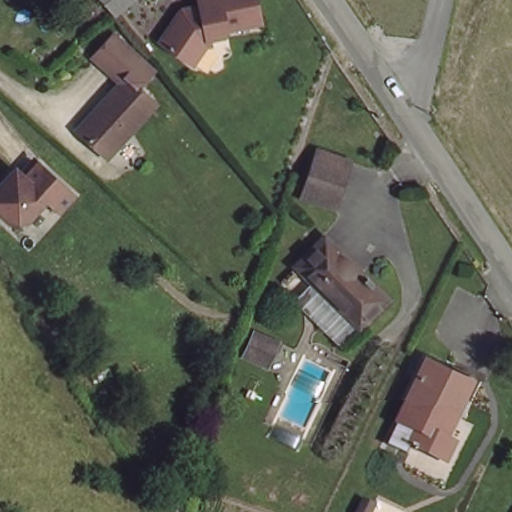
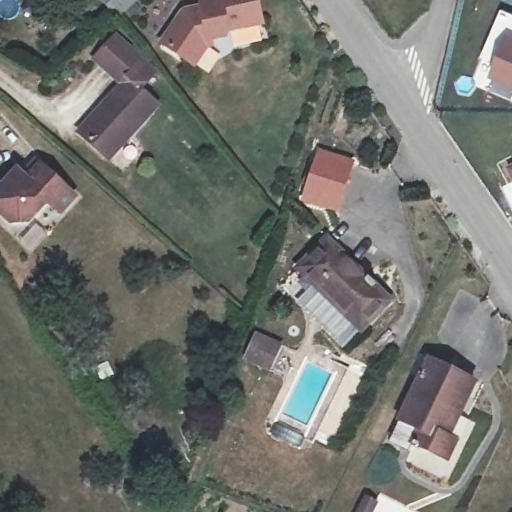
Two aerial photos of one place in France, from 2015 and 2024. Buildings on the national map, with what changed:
unchanged [(110,6),(104,0),(126,0),(112,9),(110,6)]
unchanged [(205,41),(193,61),(153,33),(183,0),(259,0),(264,19),(226,28),(205,41)]
new [(490,78),(495,65),(482,57),(501,11),(512,16),(512,87),(490,78)]
unchanged [(139,86),(156,103),(104,154),(75,125),(121,79),(95,53),(116,33),(141,56),(153,71),(139,86)]
unchanged [(322,190),(317,203),(300,197),(322,146),(351,159),(336,195),(322,190)]
new [(507,168),(512,165),(512,178),(507,168)]
unchanged [(0,183),(5,177),(15,185),(27,170),(64,203),(50,219),(37,207),(17,228),(0,229),(0,183)]
unchanged [(360,324),(306,267),(330,244),(365,280),(370,277),(390,299),(382,305),(360,324)]
unchanged [(269,347),(259,367),(239,358),(247,338),(269,347)]
unchanged [(415,441),(410,451),(390,441),(401,419),(432,359),(480,383),(463,414),(458,412),(446,435),(458,442),(450,458),(415,441)]
unchanged [(355,500),(365,504),(361,512),(349,512),(355,500)]

